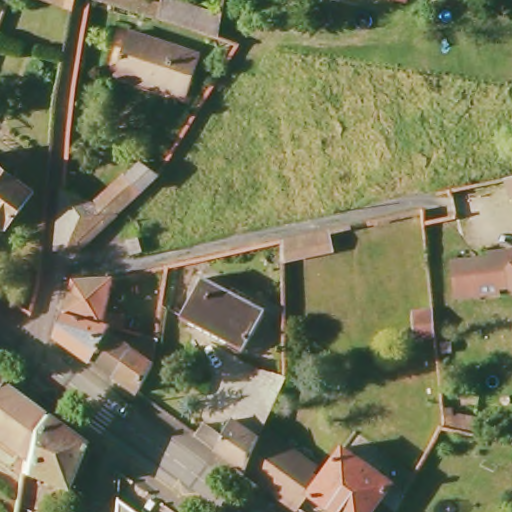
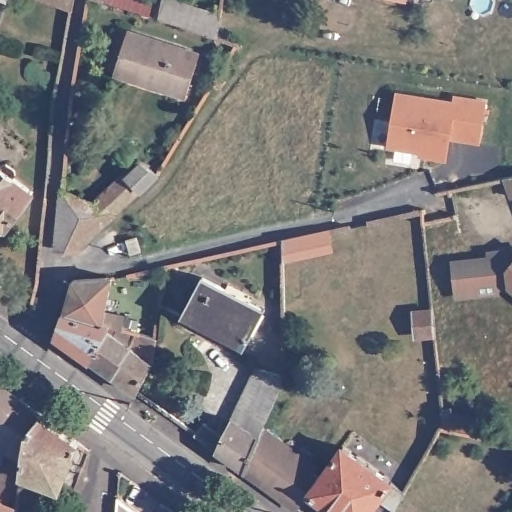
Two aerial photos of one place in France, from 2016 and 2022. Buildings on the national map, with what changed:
unchanged [(43,0),(73,0),(71,9),(43,0)]
unchanged [(105,2),(106,0),(144,0),(163,6),(164,0),(167,0),(193,7),(211,12),(205,34),(188,29),(161,20),(105,2)]
unchanged [(400,0),(404,0),(404,1),(400,0)]
unchanged [(199,57),(186,96),(115,73),(128,32),(199,57)]
new [(452,141),(447,162),(417,157),(418,154),(388,149),(397,91),(453,101),(453,95),(488,101),(480,145),(452,141)]
unchanged [(126,176),(143,160),(159,174),(141,191),(126,176)]
unchanged [(14,171),(15,180),(33,194),(7,229),(0,230),(0,167),(6,165),(14,171)]
unchanged [(512,197),(505,177),(512,176),(512,197)]
unchanged [(75,253),(56,247),(60,191),(118,212),(75,253)]
unchanged [(332,249),(284,257),(284,239),(329,230),(332,249)]
unchanged [(133,232),(139,252),(126,255),(121,236),(133,232)]
unchanged [(454,298),(454,293),(451,263),(486,260),(485,255),(501,253),(512,252),(512,290),(509,287),(494,290),(494,293),(454,298)]
unchanged [(140,336),(110,327),(63,315),(72,282),(113,277),(108,315),(159,322),(156,341),(140,336)]
unchanged [(264,311),(245,350),(182,318),(201,280),(264,311)]
unchanged [(434,335),(414,336),(413,312),(431,311),(434,335)]
unchanged [(89,361),(57,337),(63,315),(110,327),(105,337),(131,351),(140,336),(156,341),(153,365),(138,396),(113,377),(89,361)]
unchanged [(258,432),(255,438),(229,421),(255,369),(280,377),(258,432)]
unchanged [(20,425),(15,455),(0,444),(0,388),(30,410),(20,425)]
unchanged [(443,427),(441,406),(447,406),(448,413),(473,418),(469,433),(443,427)]
unchanged [(69,437),(50,484),(12,472),(15,455),(20,425),(30,410),(69,437)]
unchanged [(255,438),(240,473),(212,453),(227,420),(229,421),(255,438)]
unchanged [(309,468),(305,475),(313,481),(304,493),(293,511),(240,473),(255,438),(258,432),(309,468)]
unchanged [(389,512),(329,512),(304,493),(313,481),(334,448),(399,493),(393,505),(389,512)]
unchanged [(134,512),(111,512),(112,497),(134,512)]
new [(0,501),(15,507),(15,512),(0,512),(0,501)]

